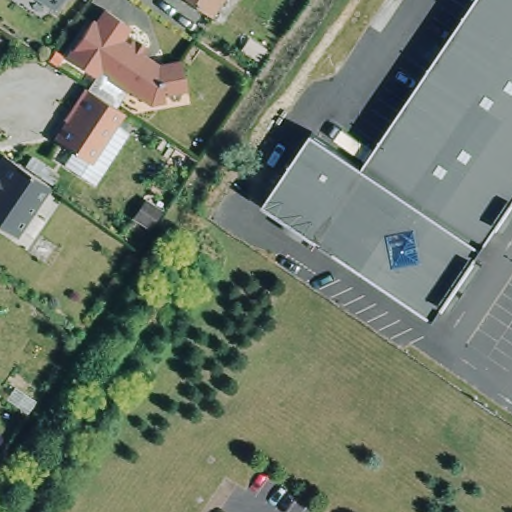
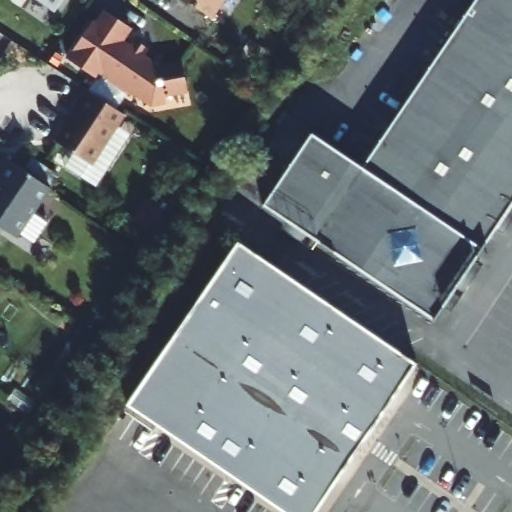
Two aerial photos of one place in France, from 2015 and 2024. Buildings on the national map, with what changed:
unchanged [(32,0),(74,0),(61,20),(32,0)]
unchanged [(210,17),(185,0),(221,0),(210,17)]
unchanged [(464,29),(483,0),(512,0),(512,61),(464,29)]
unchanged [(87,27),(91,29),(100,15),(125,32),(116,46),(125,51),(128,44),(143,54),(140,61),(154,71),(177,65),(183,93),(160,98),(162,105),(148,109),(125,94),(121,95),(103,83),(105,81),(97,76),(93,84),(62,64),(87,27)]
unchanged [(416,100),(464,29),(512,61),(512,165),(416,100)]
unchanged [(95,164),(86,178),(55,157),(63,144),(46,132),(65,104),(62,103),(76,80),(115,105),(107,116),(121,125),(95,164)]
unchanged [(512,165),(512,217),(488,253),(367,172),(369,170),(416,100),(512,165)]
unchanged [(369,170),(367,172),(488,253),(440,325),(268,209),(318,136),(369,170)]
unchanged [(25,171),(50,188),(16,238),(0,226),(0,163),(5,157),(25,171)]
new [(323,512),(251,512),(113,422),(233,245),(418,372),(323,512)]

